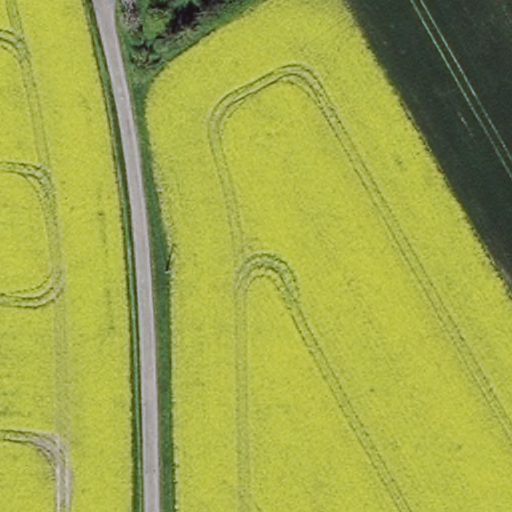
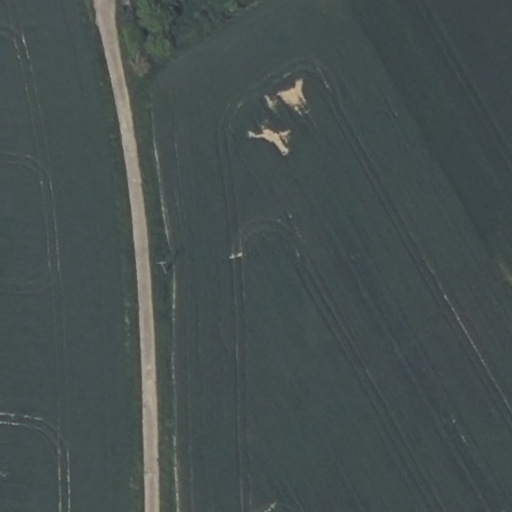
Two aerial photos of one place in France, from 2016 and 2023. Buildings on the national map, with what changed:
[]

